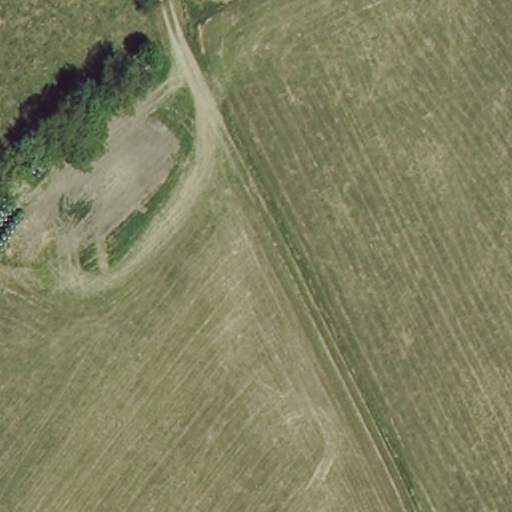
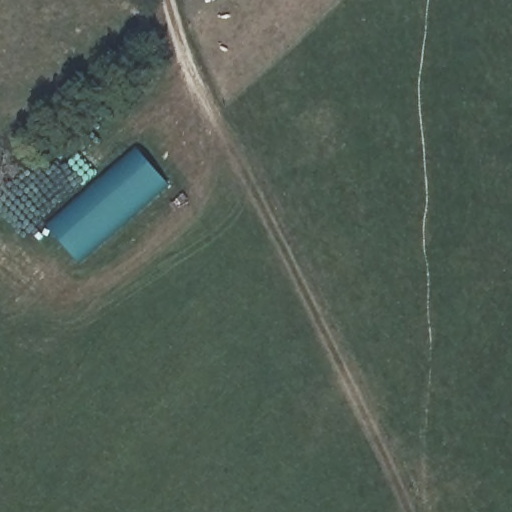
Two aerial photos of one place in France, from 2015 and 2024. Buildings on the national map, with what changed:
new [(87,184),(135,144),(168,184),(77,262),(44,225),(87,184)]

